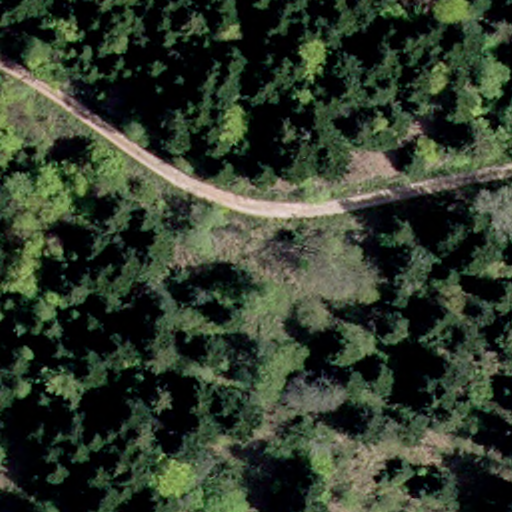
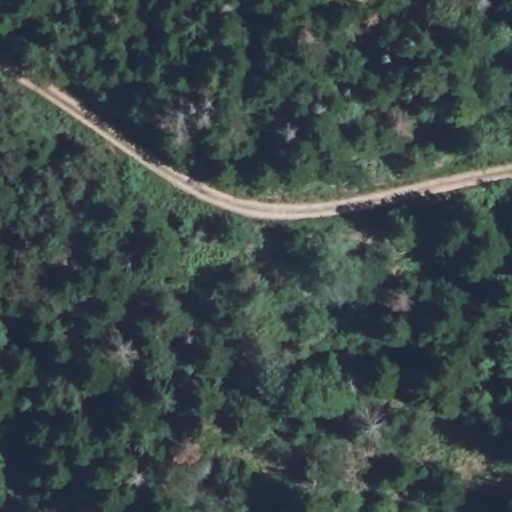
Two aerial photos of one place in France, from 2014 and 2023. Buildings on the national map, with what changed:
[]

